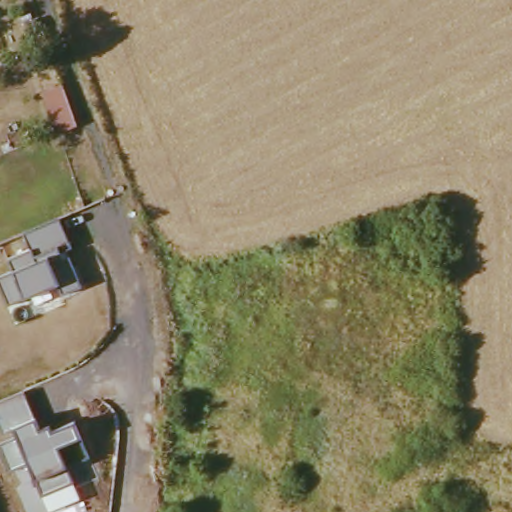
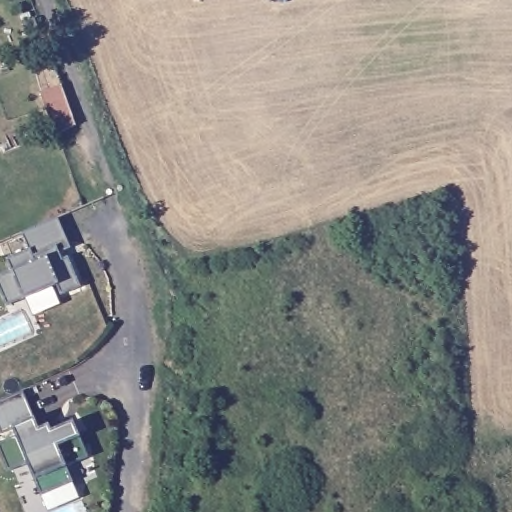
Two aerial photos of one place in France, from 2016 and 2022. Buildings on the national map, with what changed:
unchanged [(38,94),(57,88),(70,128),(51,135),(38,94)]
unchanged [(42,494),(35,478),(28,461),(10,470),(0,445),(18,436),(15,428),(3,433),(0,427),(0,402),(24,393),(35,419),(39,431),(49,427),(51,433),(75,423),(81,438),(89,457),(66,467),(73,481),(80,498),(49,510),(42,494)]

